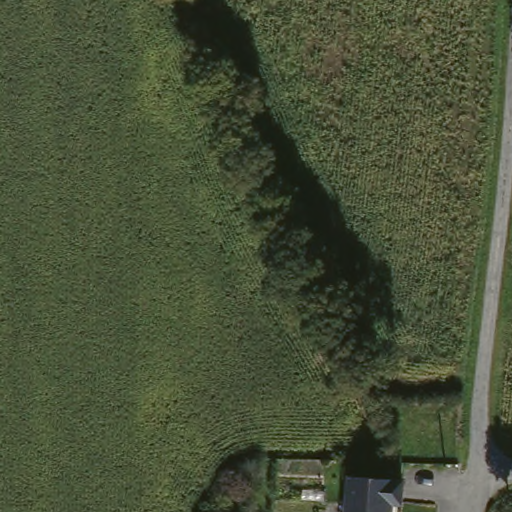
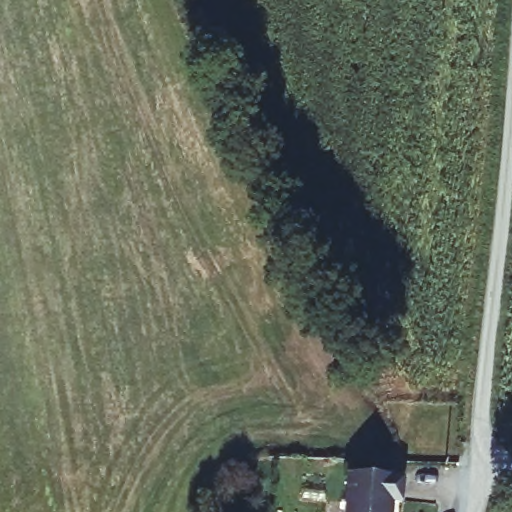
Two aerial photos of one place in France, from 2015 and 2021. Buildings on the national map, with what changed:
unchanged [(385,499),(384,512),(339,512),(341,476),(395,479),(394,499),(385,499)]

